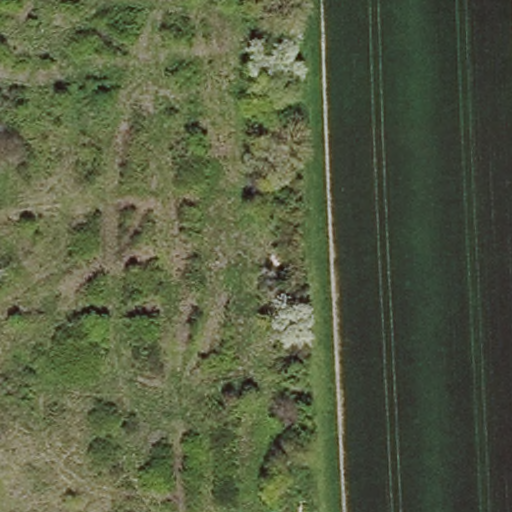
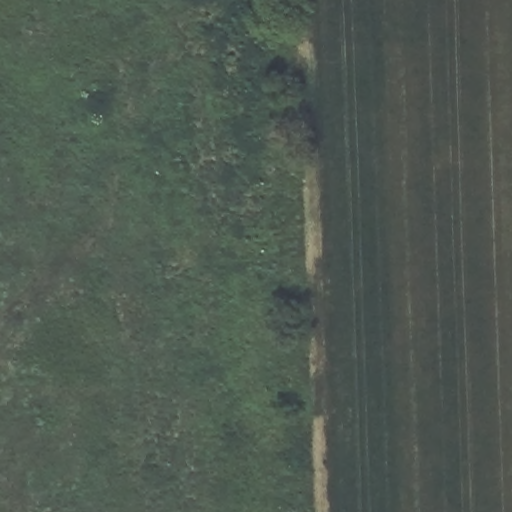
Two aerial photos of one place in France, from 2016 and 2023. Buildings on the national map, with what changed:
[]

